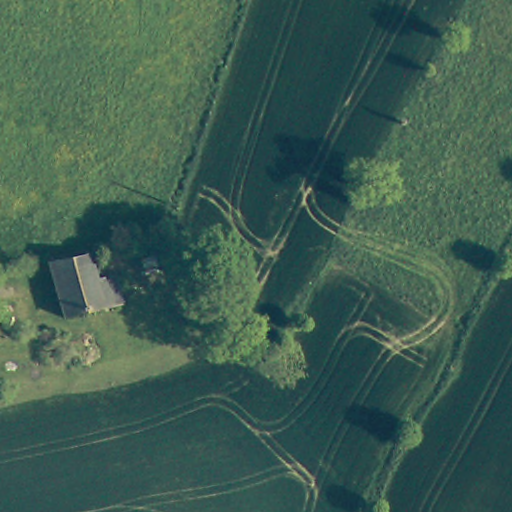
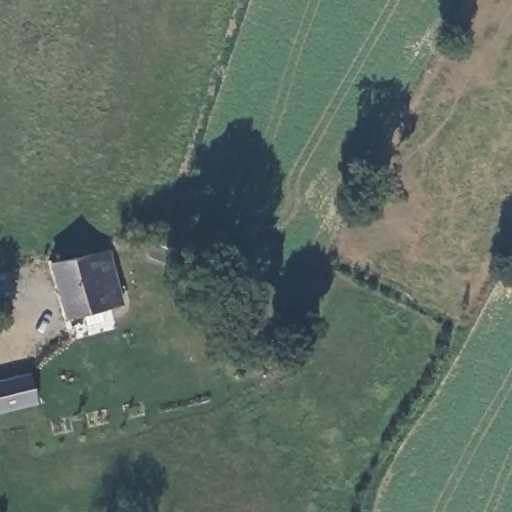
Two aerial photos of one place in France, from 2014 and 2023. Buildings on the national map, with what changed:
unchanged [(108,255),(131,251),(135,269),(126,270),(133,299),(73,313),(61,258),(106,249),(108,255)]
new [(36,404),(0,413),(0,380),(29,374),(36,404)]

